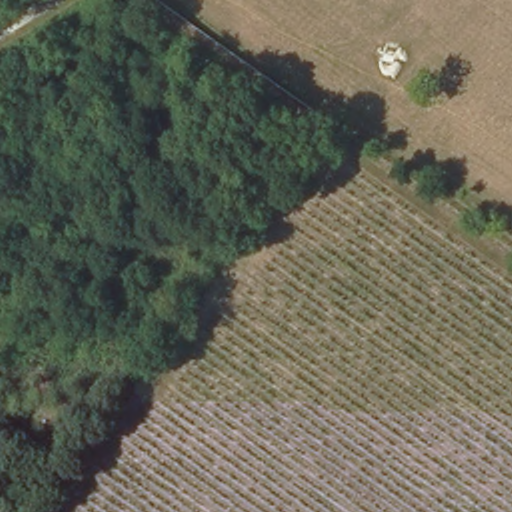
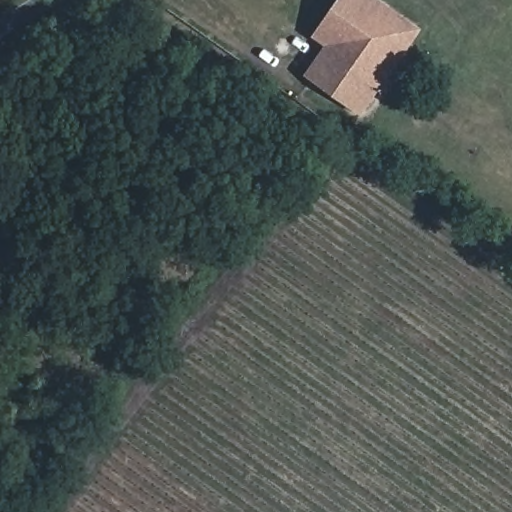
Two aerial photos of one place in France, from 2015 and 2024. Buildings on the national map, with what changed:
new [(362,115),(305,76),(325,46),(313,38),(338,0),(381,0),(422,29),(362,115)]

